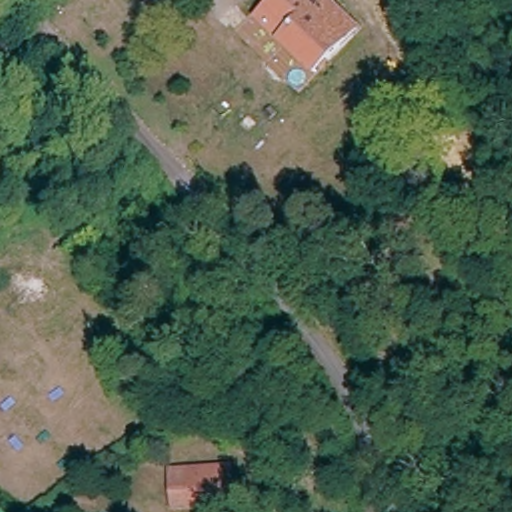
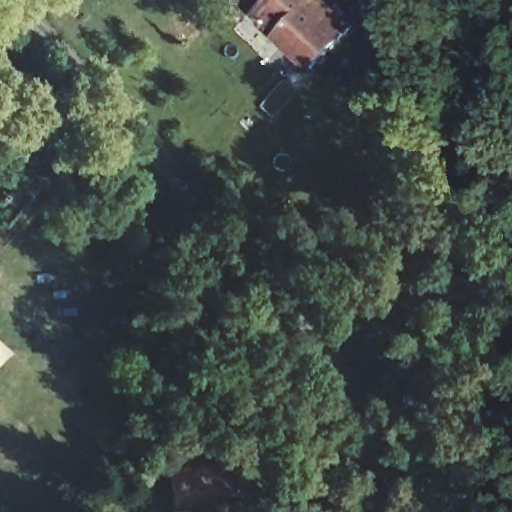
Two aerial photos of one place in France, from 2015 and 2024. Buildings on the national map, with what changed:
unchanged [(276,0),(320,0),(351,30),(306,74),(255,21),(276,0)]
unchanged [(397,168),(404,175),(386,189),(380,182),(397,168)]
unchanged [(222,470),(225,507),(177,510),(175,473),(222,470)]

